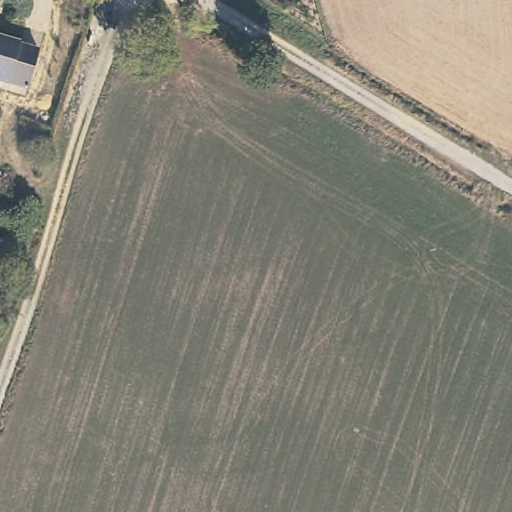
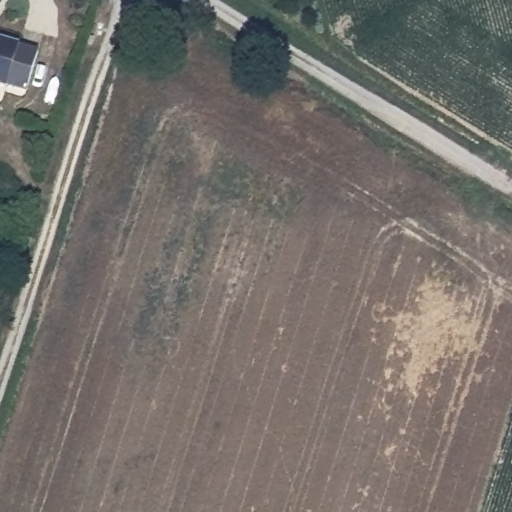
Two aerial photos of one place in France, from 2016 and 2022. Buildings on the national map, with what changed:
unchanged [(21,45),(40,51),(26,90),(7,83),(0,82),(0,35),(22,44),(21,45)]

